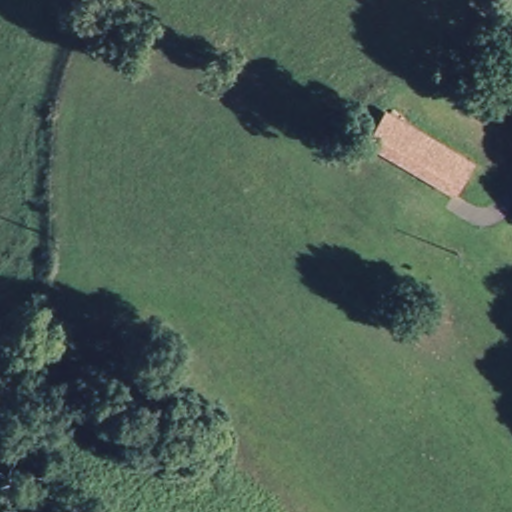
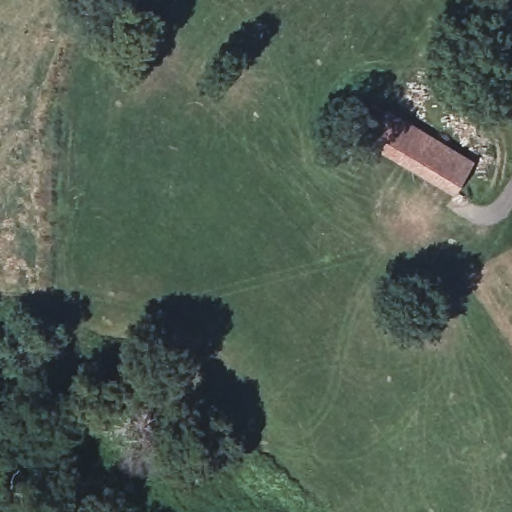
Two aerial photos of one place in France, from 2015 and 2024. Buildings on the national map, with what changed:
unchanged [(390,110),(477,159),(461,193),(452,187),(397,157),(373,144),(380,131),(390,110)]

